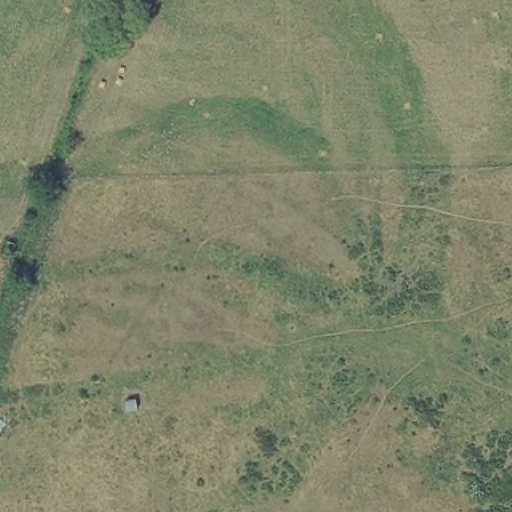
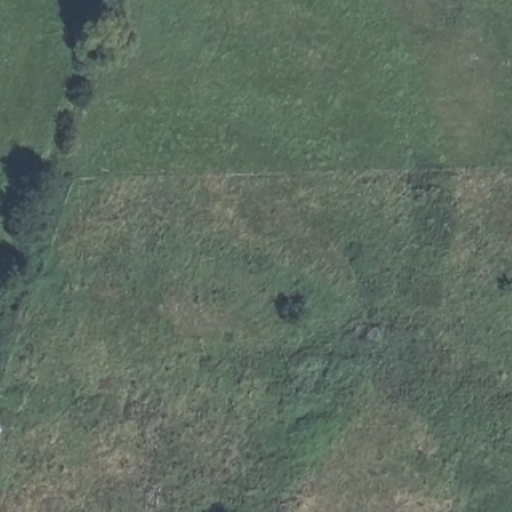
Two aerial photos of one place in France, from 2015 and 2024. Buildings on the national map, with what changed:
unchanged [(1,436),(0,436),(0,408),(8,409),(1,436)]

